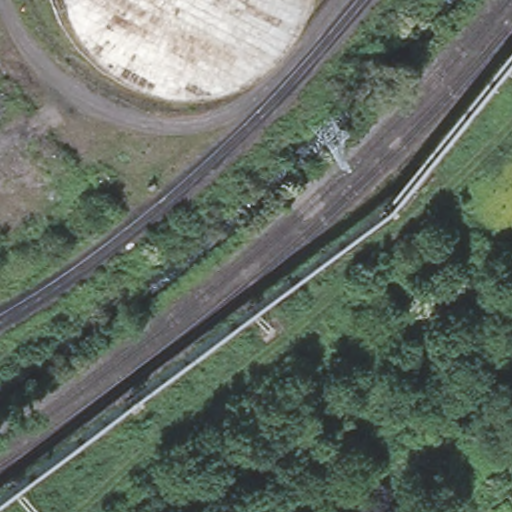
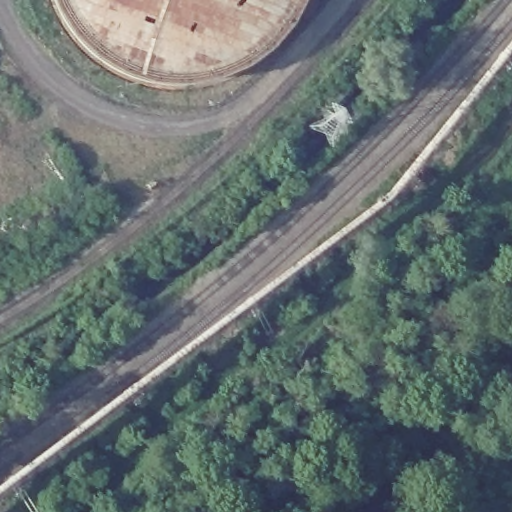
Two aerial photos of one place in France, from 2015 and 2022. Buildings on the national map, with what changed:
[]

